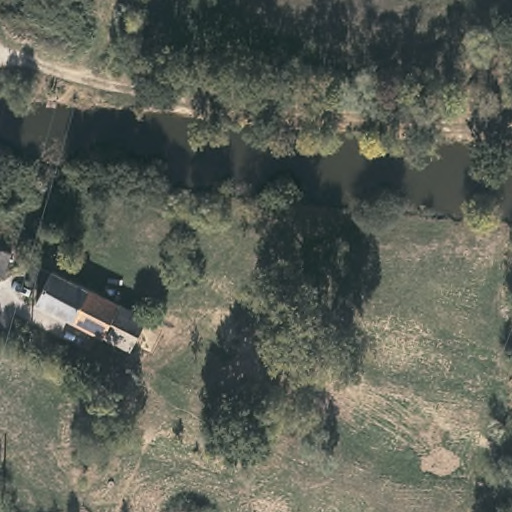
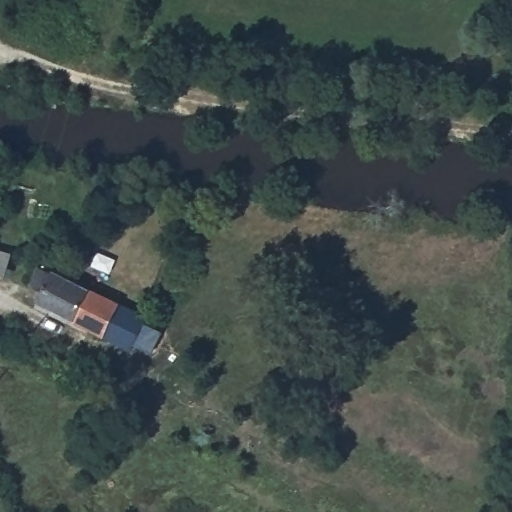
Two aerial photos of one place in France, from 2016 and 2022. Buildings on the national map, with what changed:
unchanged [(10,258),(4,277),(0,275),(0,254),(10,258)]
unchanged [(151,321),(131,359),(40,309),(59,269),(151,321)]

